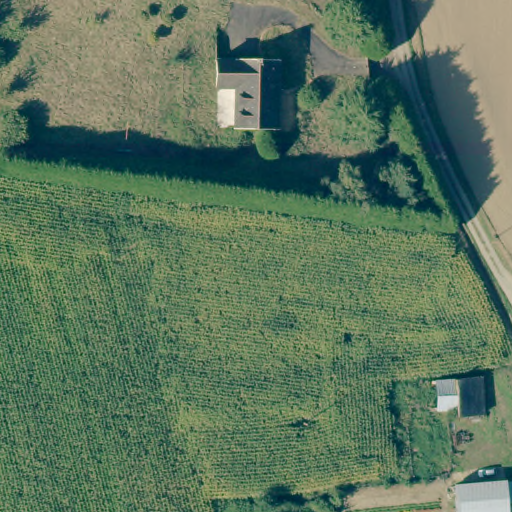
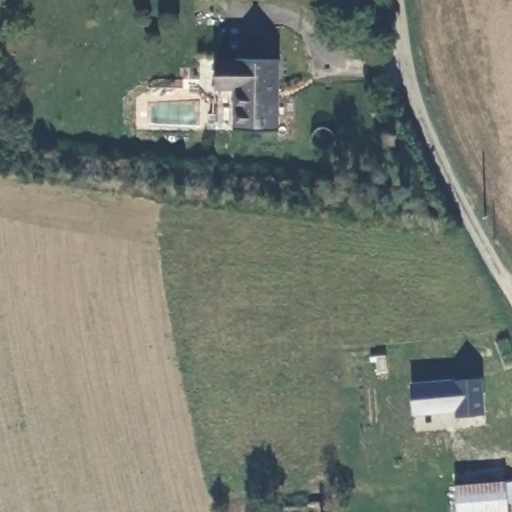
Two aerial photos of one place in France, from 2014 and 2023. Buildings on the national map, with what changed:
unchanged [(243,131),(244,62),(286,62),(285,131),(243,131)]
unchanged [(487,416),(461,418),(460,412),(442,412),(441,383),(486,380),(487,416)]
unchanged [(465,506),(464,488),(469,487),(512,484),(512,512),(465,512),(465,506)]

